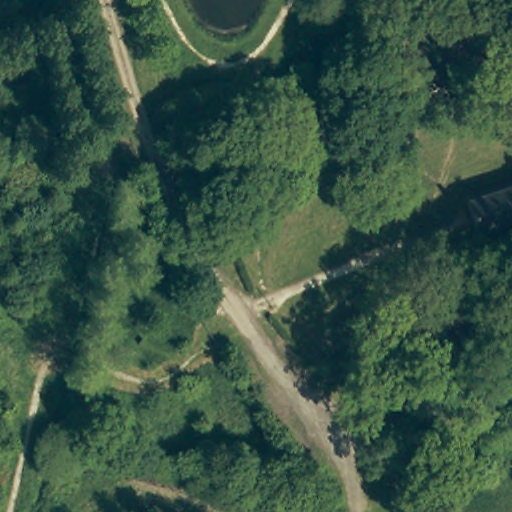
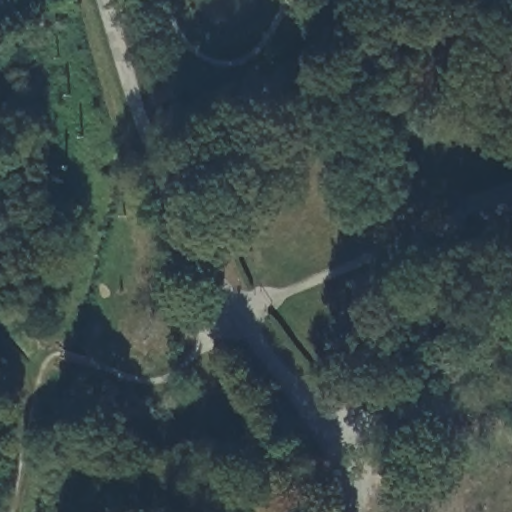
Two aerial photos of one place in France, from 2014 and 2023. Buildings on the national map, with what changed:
unchanged [(512,221),(479,232),(467,197),(512,182),(512,221)]

